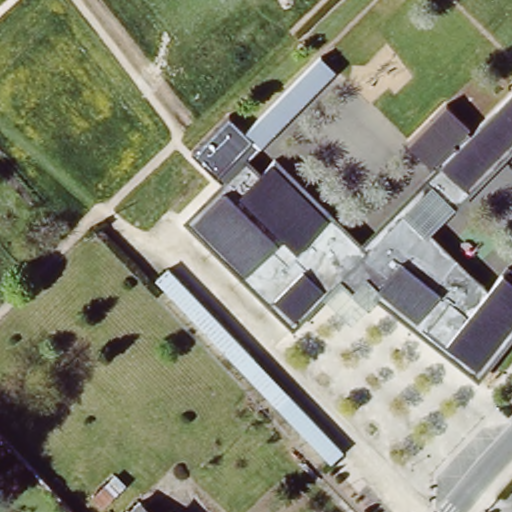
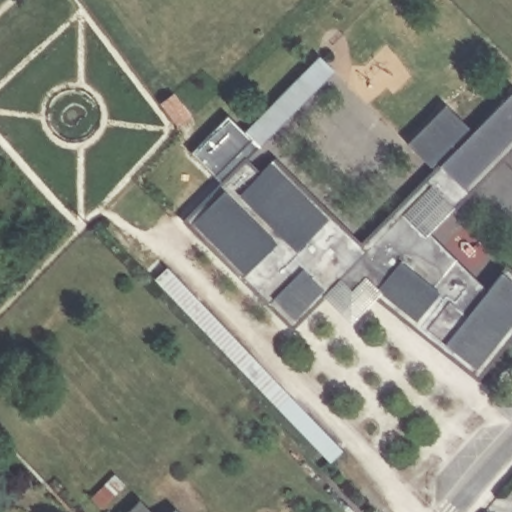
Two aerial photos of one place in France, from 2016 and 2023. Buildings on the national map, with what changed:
unchanged [(334,71),(261,144),(246,129),(320,55),(334,71)]
unchanged [(246,157),(261,171),(276,156),(361,242),(431,172),(406,146),(444,100),(474,134),(512,90),(512,149),(429,231),(489,289),(509,263),(512,266),(512,336),(479,378),(374,296),(380,289),(366,273),(352,288),(341,277),(293,328),(183,219),(246,157)]
unchanged [(324,446),(286,407),(168,282),(178,273),(296,398),(334,437),(324,446)]
unchanged [(143,498),(158,512),(129,512),(143,498)]
unchanged [(182,512),(168,512),(176,505),(182,512)]

